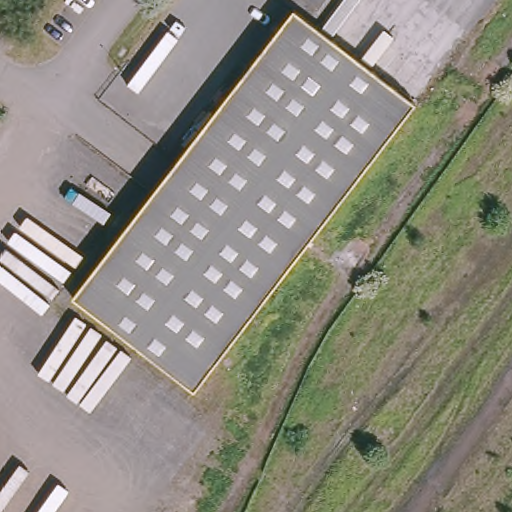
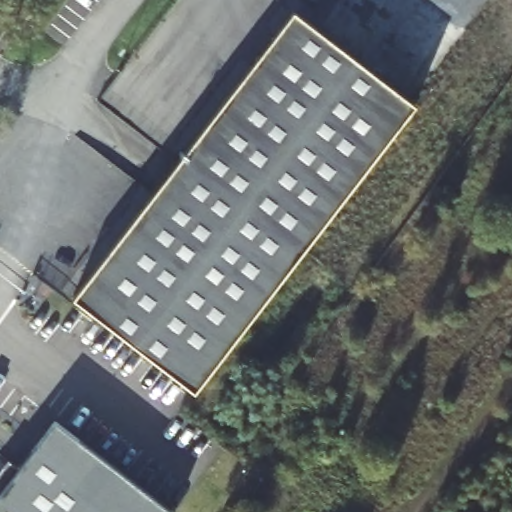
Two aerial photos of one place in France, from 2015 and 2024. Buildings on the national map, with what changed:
unchanged [(295,10),(417,104),(195,392),(73,298),(295,10)]
new [(158,512),(0,512),(0,488),(50,427),(158,512)]

